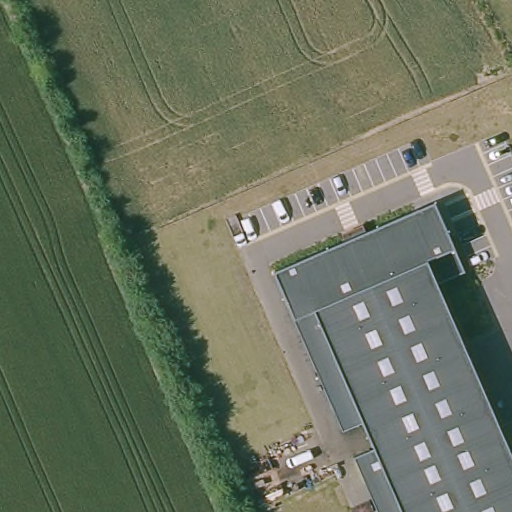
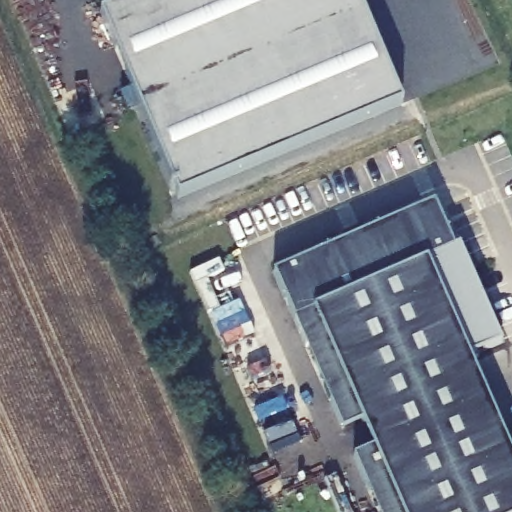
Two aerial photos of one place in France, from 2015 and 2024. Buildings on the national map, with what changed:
new [(177,198),(99,13),(130,0),(355,0),(400,106),(177,198)]
unchanged [(455,247),(466,272),(435,284),(512,457),(512,512),(378,512),(353,454),(370,447),(360,424),(344,431),(275,270),(434,203),(452,248),(455,247)]
new [(468,357),(435,284),(466,272),(499,344),(468,357)]

